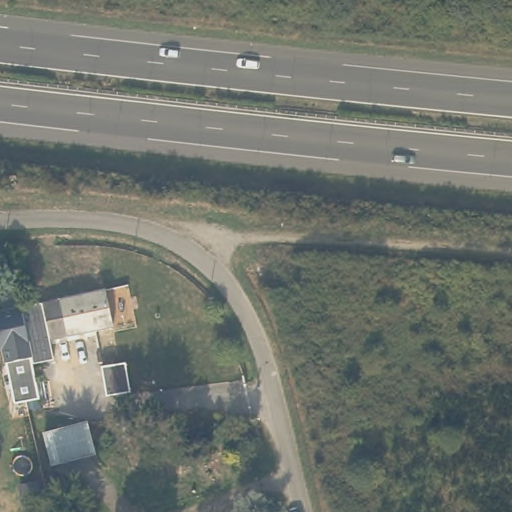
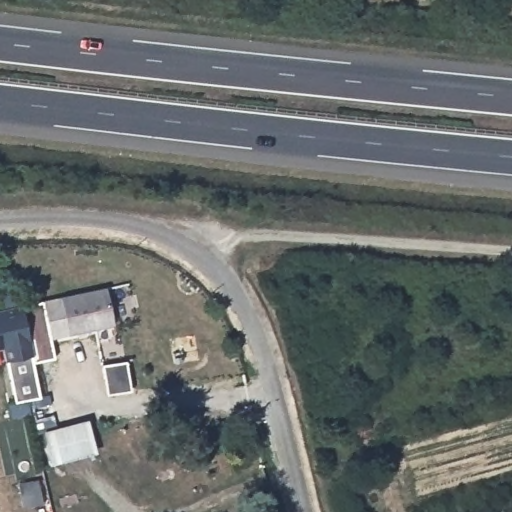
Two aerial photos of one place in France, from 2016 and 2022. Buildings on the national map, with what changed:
unchanged [(2,311),(0,300),(0,294),(16,292),(18,305),(99,287),(108,325),(36,340),(39,353),(26,354),(24,343),(9,346),(0,348),(0,311),(2,311)]

